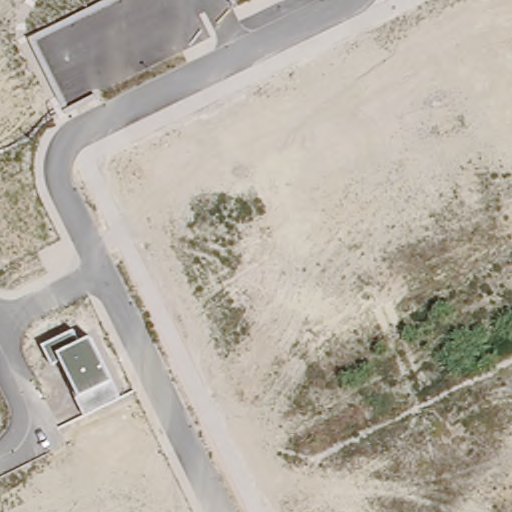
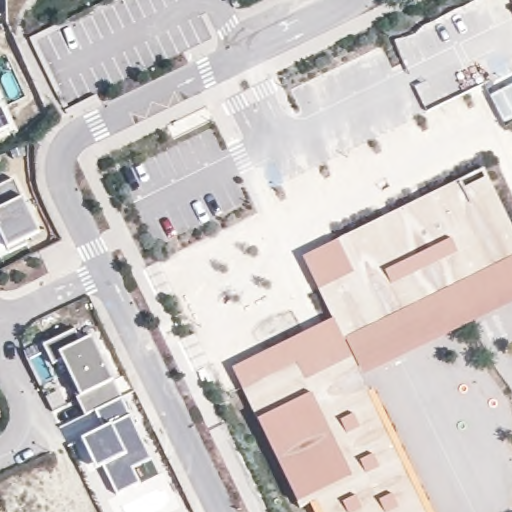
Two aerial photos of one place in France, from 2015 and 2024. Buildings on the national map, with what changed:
new [(10,130),(0,135),(0,109),(10,130)]
new [(337,236),(485,164),(512,218),(512,256),(346,339),(336,319),(320,285),(353,268),(337,236)]
new [(40,232),(25,239),(27,243),(8,252),(0,235),(0,188),(15,181),(40,232)]
new [(337,236),(353,268),(320,285),(304,252),(337,236)]
new [(512,273),(352,352),(346,339),(512,256),(512,273)]
new [(512,309),(367,381),(352,352),(512,273),(512,309)]
new [(336,319),(346,339),(352,352),(306,375),(305,375),(297,357),(240,384),(233,369),(336,319)]
unchanged [(88,414),(80,397),(63,360),(53,366),(43,344),(74,331),(80,343),(92,338),(114,382),(121,398),(88,414)]
new [(305,375),(306,375),(352,352),(367,381),(432,512),(321,512),(312,495),(297,502),(240,384),(297,357),(305,375)]
new [(129,417),(150,459),(132,469),(140,483),(117,494),(100,460),(92,463),(80,440),(129,417)]

